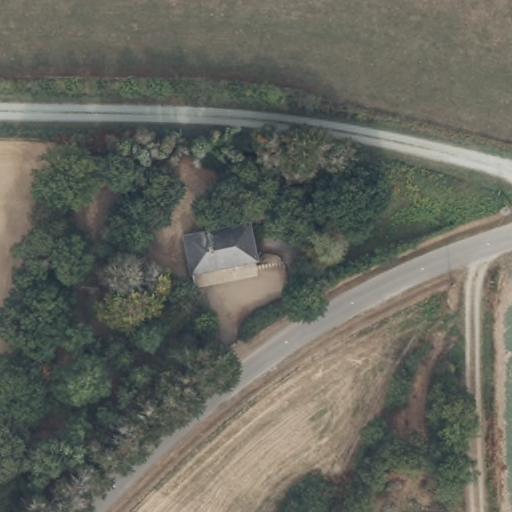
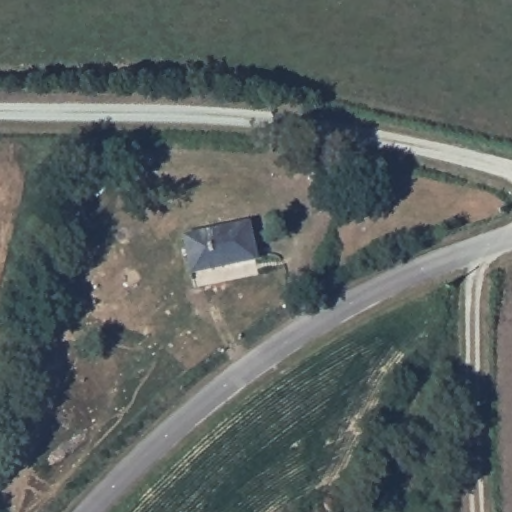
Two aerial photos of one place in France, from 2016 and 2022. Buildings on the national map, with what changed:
unchanged [(245,226),(254,260),(192,275),(185,240),(245,226)]

